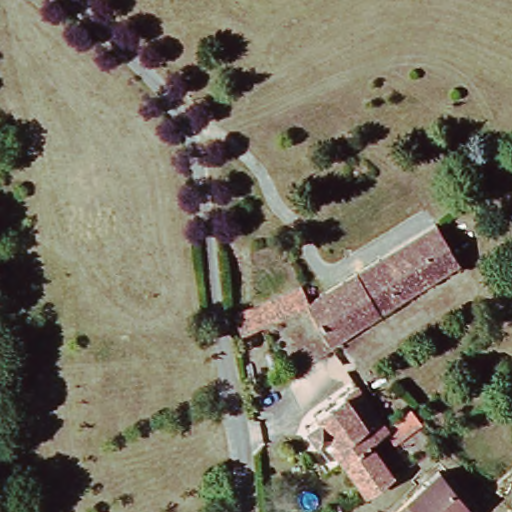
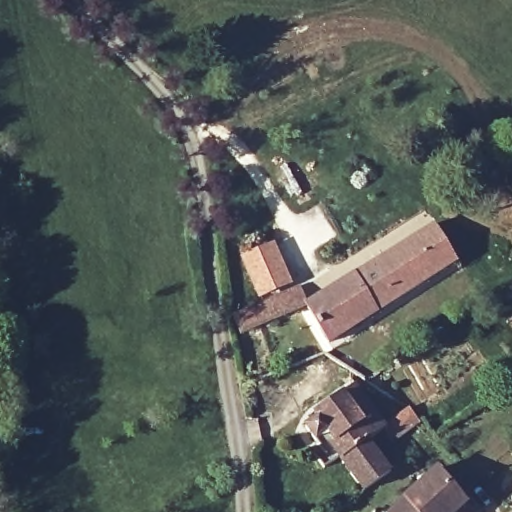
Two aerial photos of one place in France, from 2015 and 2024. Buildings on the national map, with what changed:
unchanged [(383,308),(332,340),(311,302),(441,222),(462,260),(383,308)]
new [(275,242),(292,285),(258,298),(240,257),(275,242)]
unchanged [(302,283),(311,302),(245,330),(235,311),(302,283)]
unchanged [(379,475),(355,491),(344,478),(303,421),(346,388),(371,427),(396,410),(397,412),(404,425),(380,441),(372,431),(356,443),(379,475)]
unchanged [(475,505),(466,512),(397,512),(446,471),(475,505)]

